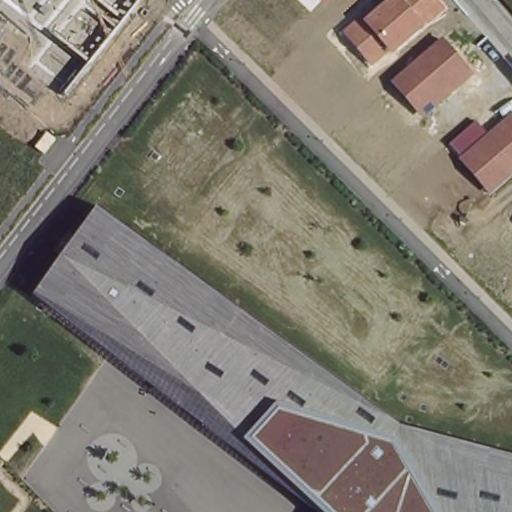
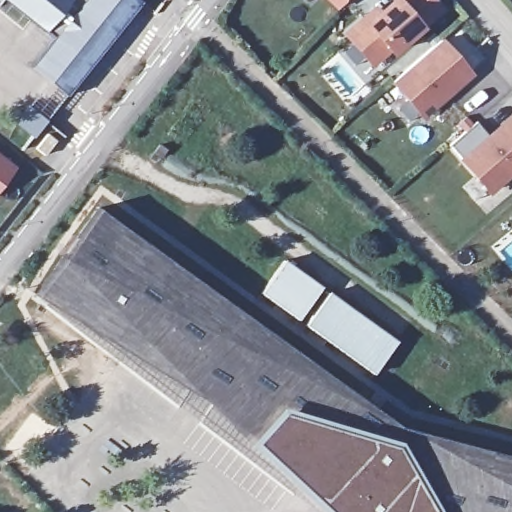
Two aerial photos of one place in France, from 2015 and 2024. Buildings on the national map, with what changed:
unchanged [(30,66),(53,39),(44,32),(3,0),(136,0),(141,3),(67,96),(30,66)]
unchanged [(437,0),(446,10),(370,69),(341,34),(386,0),(437,0)]
unchanged [(443,38),(474,76),(421,121),(390,84),(443,38)]
new [(46,120),(35,137),(17,123),(29,108),(46,120)]
unchanged [(486,136),(512,114),(512,176),(489,195),(449,145),(474,121),(486,136)]
new [(15,169),(0,185),(0,158),(15,169)]
unchanged [(34,298),(98,208),(403,428),(512,457),(512,512),(311,512),(34,298)]
new [(298,320),(261,293),(283,260),(321,287),(298,320)]
new [(373,374),(305,325),(328,292),(397,343),(373,374)]

